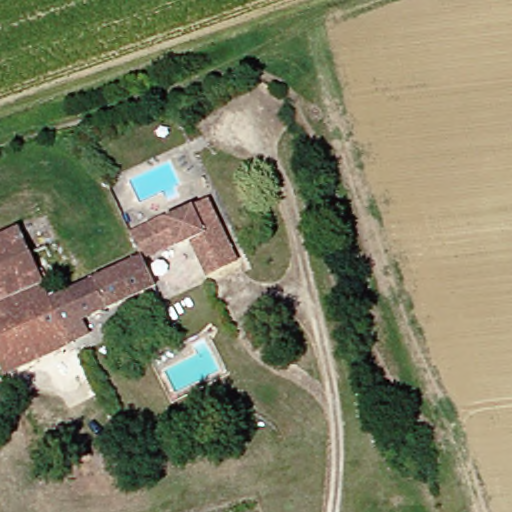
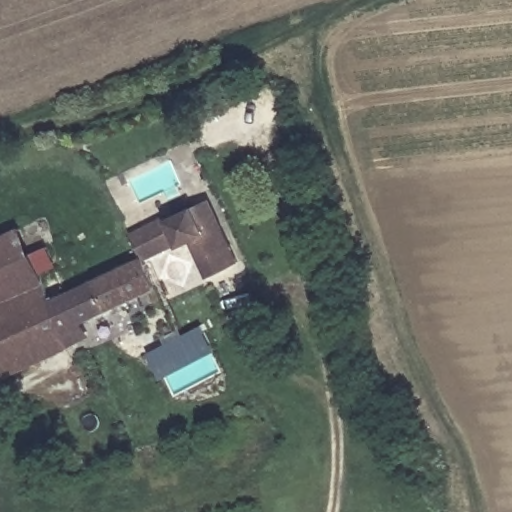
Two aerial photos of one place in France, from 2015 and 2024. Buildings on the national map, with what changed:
unchanged [(78,347),(8,377),(0,358),(0,238),(25,227),(56,299),(152,259),(140,234),(175,218),(178,220),(204,208),(220,201),(234,231),(250,266),(218,280),(200,243),(190,248),(188,246),(152,261),(165,289),(86,324),(93,340),(78,347)]
new [(202,323),(217,351),(163,379),(149,351),(202,323)]

